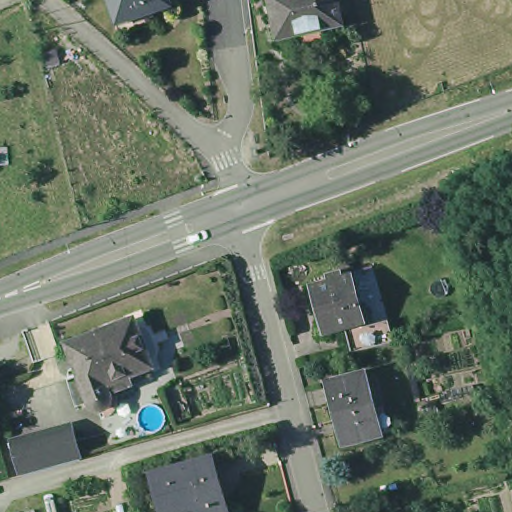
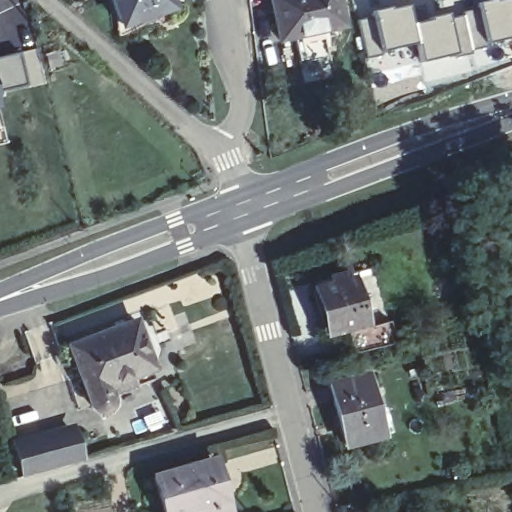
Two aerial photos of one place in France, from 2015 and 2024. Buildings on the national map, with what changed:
unchanged [(148,23),(138,28),(122,34),(118,23),(111,0),(167,0),(169,9),(149,16),(151,21),(148,23)]
unchanged [(347,26),(284,41),(274,0),(341,0),(347,26)]
new [(492,0),(512,0),(512,38),(486,45),(476,8),(474,4),(492,0)]
new [(370,11),(407,4),(411,22),(414,43),(381,53),(364,58),(355,19),(371,15),(370,11)]
new [(447,11),(449,16),(476,8),(486,45),(459,55),(420,63),(414,43),(411,22),(447,11)]
new [(28,86),(0,92),(0,57),(21,52),(28,86)]
new [(0,107),(0,102),(1,106),(0,107)]
unchanged [(346,327),(344,323),(327,327),(316,283),(329,280),(328,274),(341,270),(343,276),(352,274),(364,318),(365,322),(388,316),(394,337),(351,348),(346,327)]
unchanged [(111,395),(112,398),(111,402),(110,405),(106,408),(103,410),(99,409),(95,407),(93,406),(70,345),(135,320),(153,368),(151,369),(155,379),(111,395)]
unchanged [(391,442),(381,444),(344,454),(328,395),(365,385),(374,420),(384,417),(391,442)]
unchanged [(65,434),(74,432),(81,460),(75,462),(39,472),(25,476),(18,447),(65,434)]
unchanged [(215,460),(229,512),(165,512),(155,476),(215,460)]

